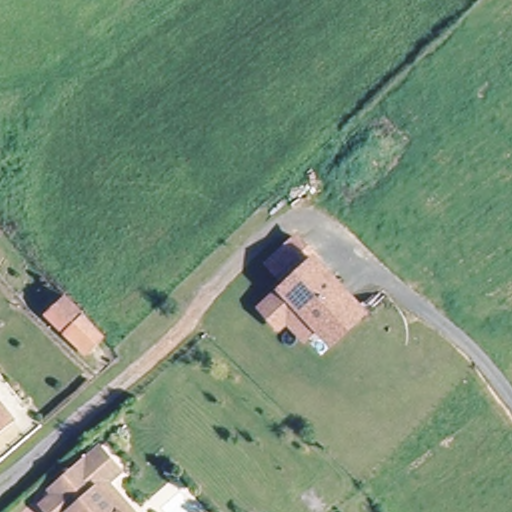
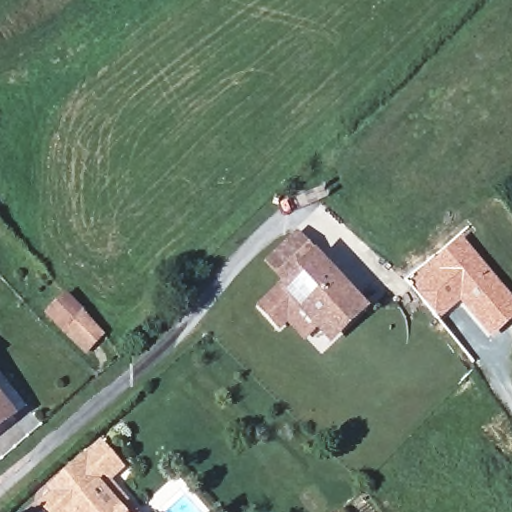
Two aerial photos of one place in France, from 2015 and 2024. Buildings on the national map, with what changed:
new [(462,238),(512,297),(512,322),(491,340),(460,304),(440,319),(407,281),(430,261),(462,238)]
unchanged [(282,314),(272,322),(256,303),(310,255),(354,305),(321,335),(310,323),(298,332),(282,314)]
unchanged [(76,356),(45,322),(54,315),(49,308),(57,299),(94,340),(76,356)]
unchanged [(9,418),(0,424),(0,406),(9,418)]
unchanged [(37,507),(50,497),(47,493),(96,452),(114,473),(101,485),(117,504),(124,512),(42,512),(37,507)]

